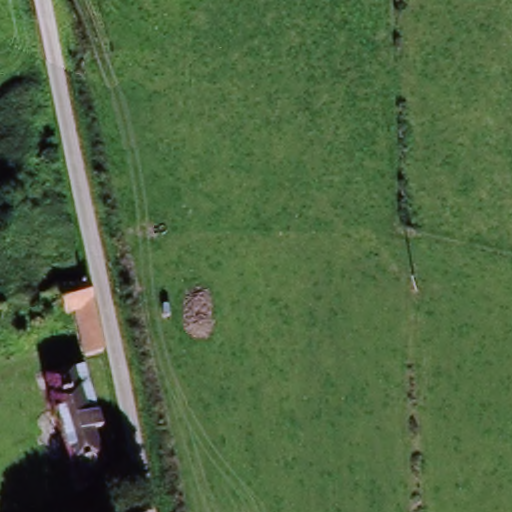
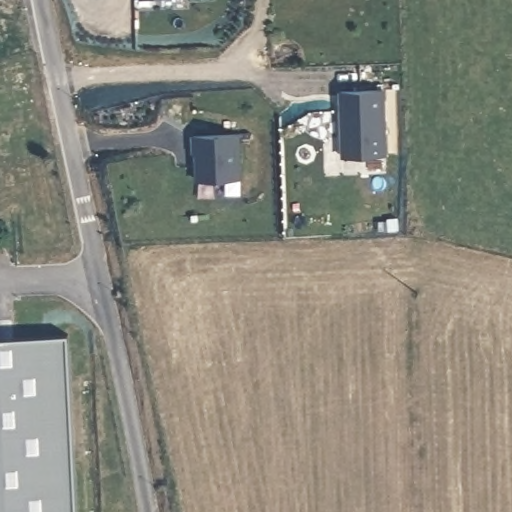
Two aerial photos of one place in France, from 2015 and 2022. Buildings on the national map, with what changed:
new [(385,92),(388,157),(346,160),(343,94),(385,92)]
new [(241,136),(243,180),(197,181),(196,152),(193,153),(192,137),(241,136)]
demolished [(90,361),(87,351),(85,346),(77,320),(69,322),(60,293),(87,284),(108,355),(90,361)]
new [(87,512),(0,512),(0,348),(85,348),(87,512)]
demolished [(43,392),(42,387),(69,378),(77,375),(77,376),(98,437),(88,440),(102,483),(105,492),(80,501),(77,494),(64,453),(63,452),(60,442),(43,392)]

